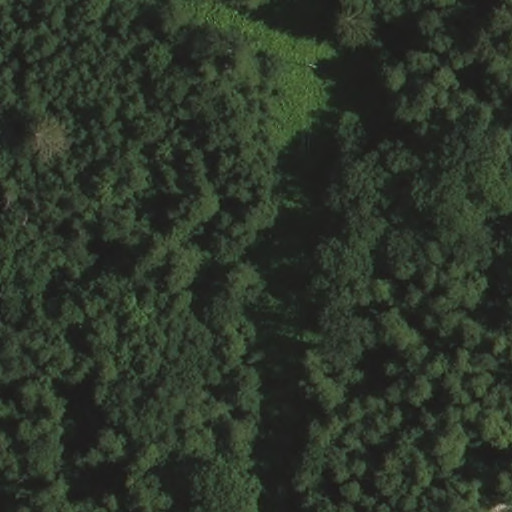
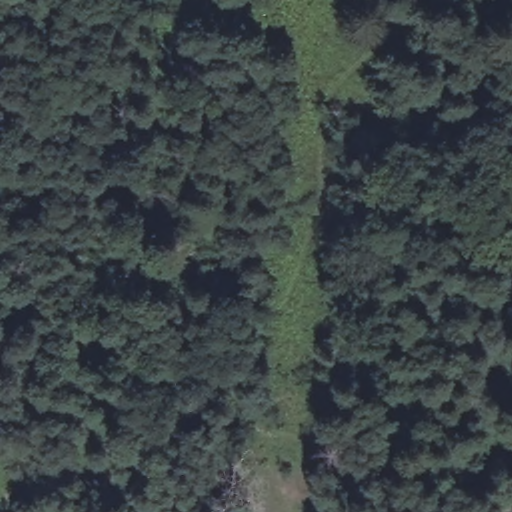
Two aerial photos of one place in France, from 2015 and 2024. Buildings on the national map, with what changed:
[]

